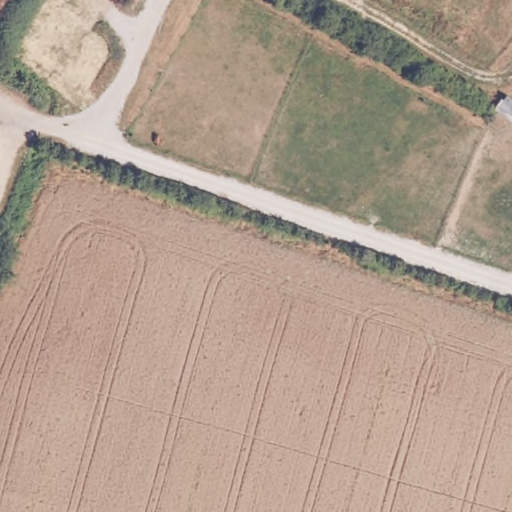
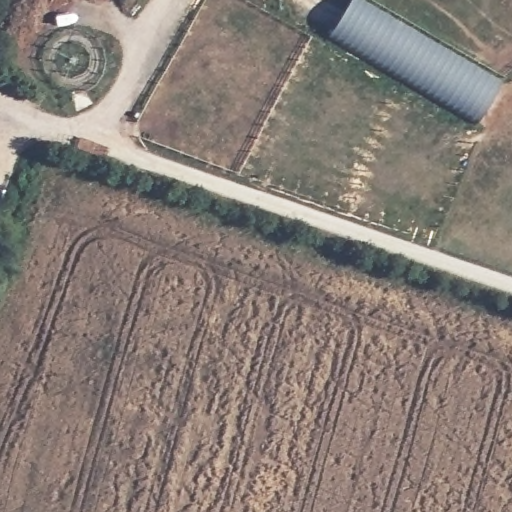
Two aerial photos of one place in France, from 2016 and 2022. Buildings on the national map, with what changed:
new [(349,0),(496,88),(476,120),(327,34),(349,0)]

